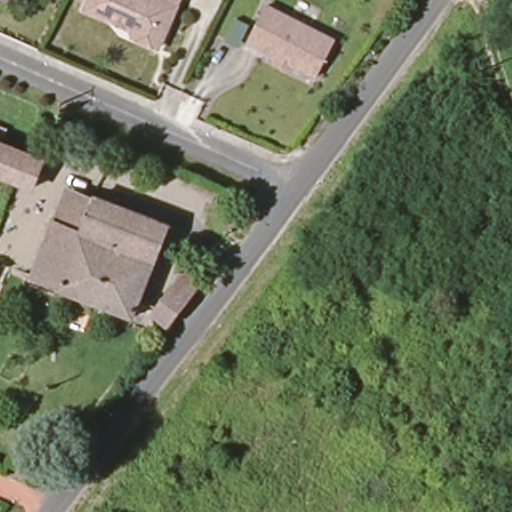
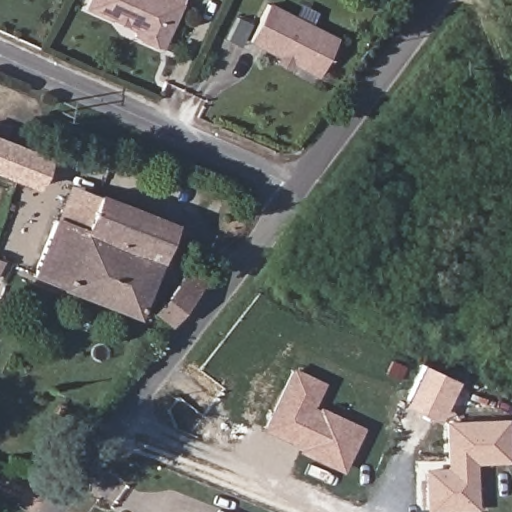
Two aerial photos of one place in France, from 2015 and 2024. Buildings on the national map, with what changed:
unchanged [(160,41),(150,45),(137,39),(133,30),(84,9),(88,0),(179,0),(160,41)]
unchanged [(325,77),(256,42),(274,6),(343,40),(325,77)]
unchanged [(0,174),(0,141),(31,153),(52,162),(39,190),(20,182),(0,174)]
unchanged [(78,189),(107,201),(94,234),(65,222),(78,189)]
unchanged [(108,197),(180,226),(143,319),(42,281),(65,222),(94,234),(107,201),(108,197)]
unchanged [(9,265),(2,282),(0,282),(0,262),(9,265)]
unchanged [(157,317),(194,269),(209,281),(171,328),(157,317)]
new [(440,422),(404,405),(423,363),(459,381),(440,422)]
new [(269,428),(295,370),(323,383),(312,407),(322,412),(322,410),(364,429),(345,469),(305,450),(307,445),(285,436),(269,428)]
new [(453,461),(451,424),(510,422),(511,460),(477,461),(478,508),(432,510),(431,471),(454,471),(453,461)]

